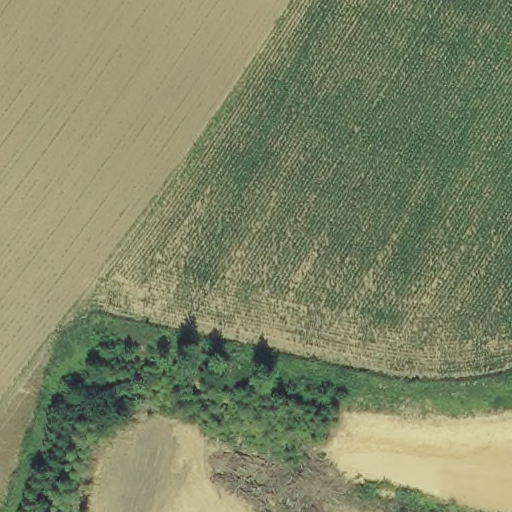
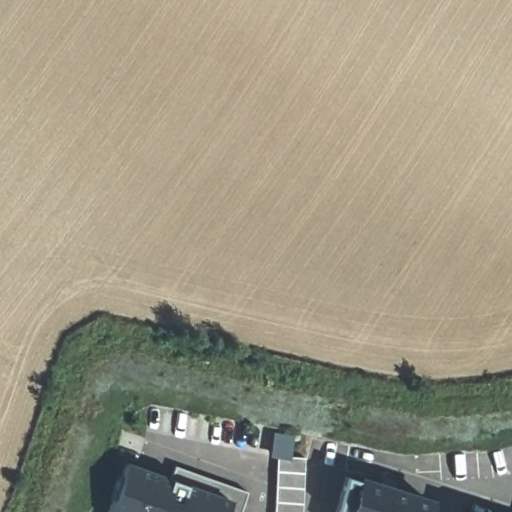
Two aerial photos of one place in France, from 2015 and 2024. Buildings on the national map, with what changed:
new [(299,439),(295,458),(278,455),(281,436),(299,439)]
new [(307,512),(280,512),(284,457),(311,459),(307,512)]
new [(246,512),(116,512),(120,500),(118,499),(125,477),(128,478),(133,465),(165,476),(164,478),(174,481),(176,479),(176,480),(181,467),(253,492),(246,512)]
new [(433,512),(341,512),(352,478),(435,504),(433,512)]
demolished [(301,508),(300,512),(248,512),(254,496),(301,508)]
demolished [(373,512),(355,512),(356,506),(373,512)]

